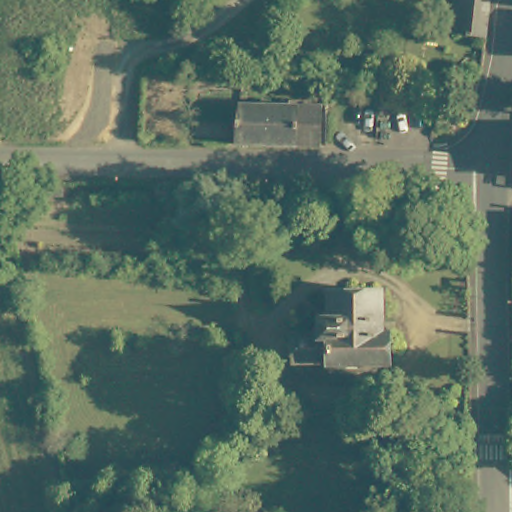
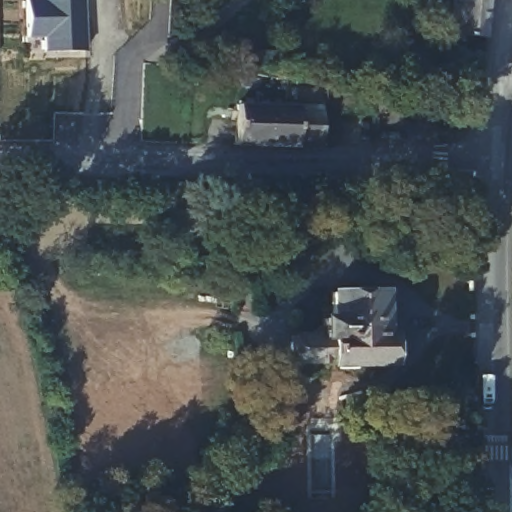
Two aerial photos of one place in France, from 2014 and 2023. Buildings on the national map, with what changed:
new [(44,39),(27,38),(26,0),(85,0),(85,51),(44,52),(44,39)]
unchanged [(491,1),(487,39),(451,36),(455,0),(470,0),(491,1)]
unchanged [(491,1),(470,0),(491,0),(491,1)]
unchanged [(298,106),(296,146),(236,145),(238,105),(298,106)]
unchanged [(296,146),(298,106),(323,107),(322,148),(296,146)]
unchanged [(41,197),(41,185),(65,185),(65,198),(41,197)]
unchanged [(210,196),(189,196),(189,189),(188,185),(210,186),(210,188),(210,196)]
unchanged [(331,291),(382,291),(383,335),(391,334),(391,364),(330,365),(330,361),(292,362),(292,333),(319,333),(319,310),(326,310),(325,295),(331,295),(331,291)]

